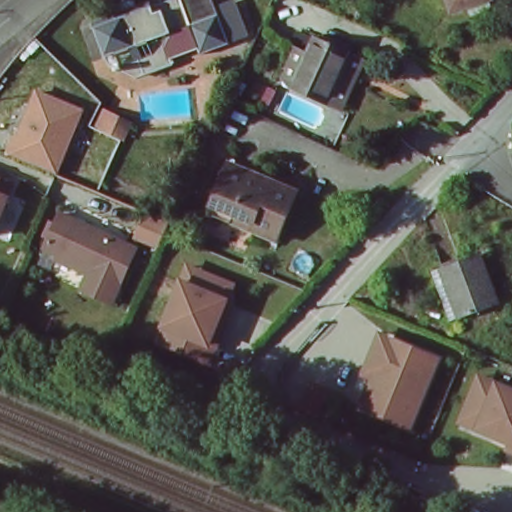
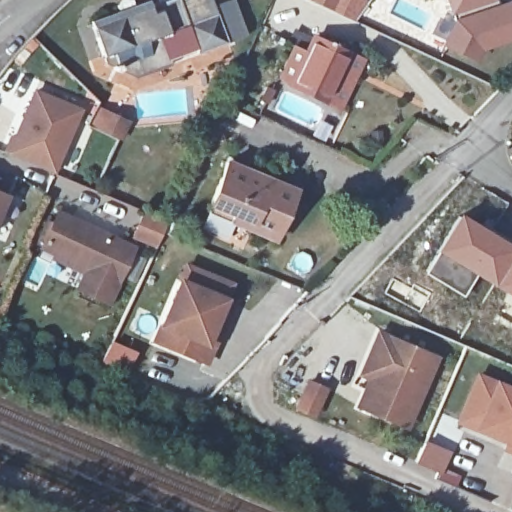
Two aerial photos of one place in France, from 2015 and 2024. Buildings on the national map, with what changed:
unchanged [(105,61),(90,21),(118,10),(116,5),(129,0),(132,0),(134,5),(146,0),(148,5),(157,2),(156,0),(163,0),(210,0),(213,6),(229,0),(234,0),(248,35),(226,42),(198,52),(196,47),(168,57),(170,62),(133,75),(105,61)]
new [(482,51),(476,61),(441,45),(453,19),(451,10),(481,0),(488,0),(492,7),(511,0),(512,3),(512,40),(482,51)]
unchanged [(447,0),(481,0),(451,10),(447,0)]
unchanged [(353,57),(329,107),(294,90),(317,41),(353,57)]
unchanged [(83,109),(56,175),(5,155),(33,90),(83,109)]
unchanged [(210,205),(228,162),(295,190),(274,240),(228,220),(206,211),(210,205)]
unchanged [(0,180),(0,176),(1,176),(0,180)]
unchanged [(0,206),(0,192),(5,194),(0,206)]
unchanged [(43,250),(57,215),(133,245),(113,302),(81,291),(90,268),(43,250)]
new [(512,249),(512,294),(478,272),(464,298),(425,274),(439,250),(458,216),(512,249)]
demolished [(462,316),(445,267),(481,254),(499,303),(462,316)]
unchanged [(185,260),(242,282),(209,364),(151,342),(185,260)]
unchanged [(357,407),(369,380),(359,375),(376,335),(386,339),(434,358),(405,428),(357,407)]
unchanged [(504,446),(507,440),(475,427),(458,420),(476,377),(495,383),(512,389),(512,450),(504,446)]
unchanged [(324,391),(313,418),(296,411),(308,384),(324,391)]

